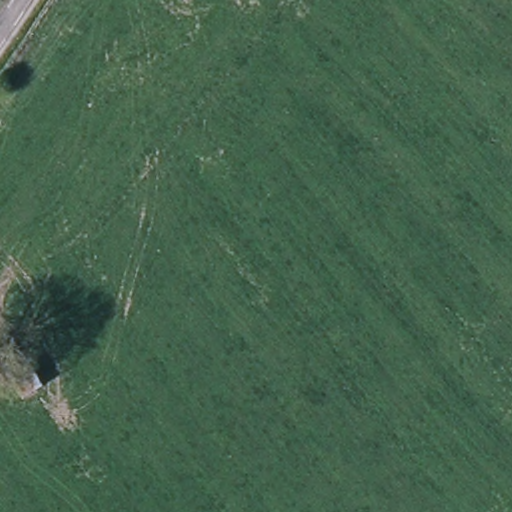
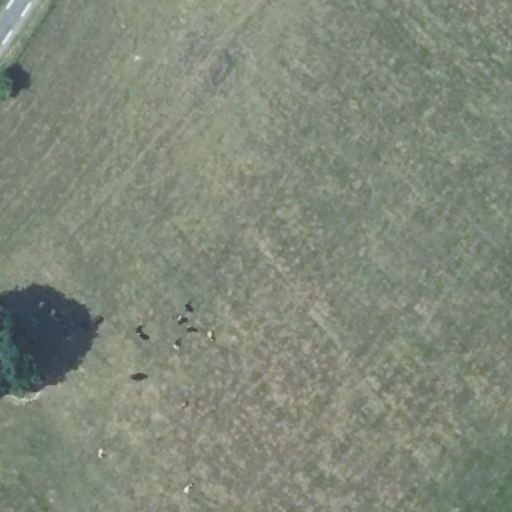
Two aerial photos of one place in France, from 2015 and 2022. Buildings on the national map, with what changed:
unchanged [(44,380),(34,387),(24,393),(7,365),(27,352),(44,380)]

